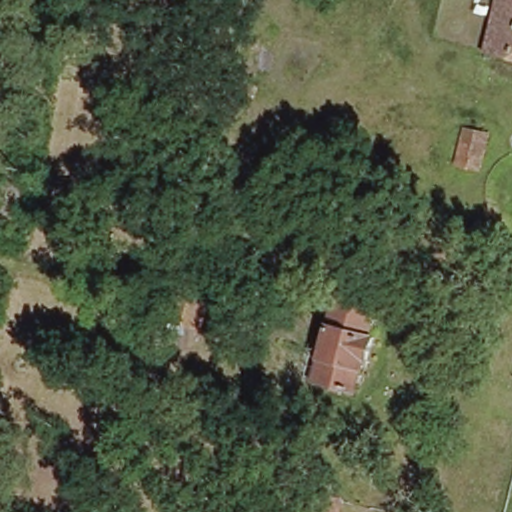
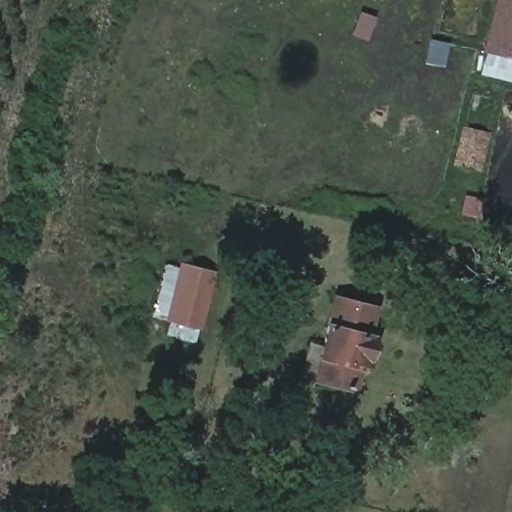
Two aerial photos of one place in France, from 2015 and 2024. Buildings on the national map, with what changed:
unchanged [(492,0),(512,0),(512,46),(481,39),(492,0)]
unchanged [(480,185),(450,180),(463,125),(494,134),(480,185)]
new [(197,343),(167,335),(171,322),(153,317),(164,264),(178,268),(180,263),(215,272),(200,330),(197,343)]
unchanged [(362,323),(361,330),(381,334),(373,367),(360,366),(354,387),(361,390),(354,411),(302,400),(323,312),(362,323)]

